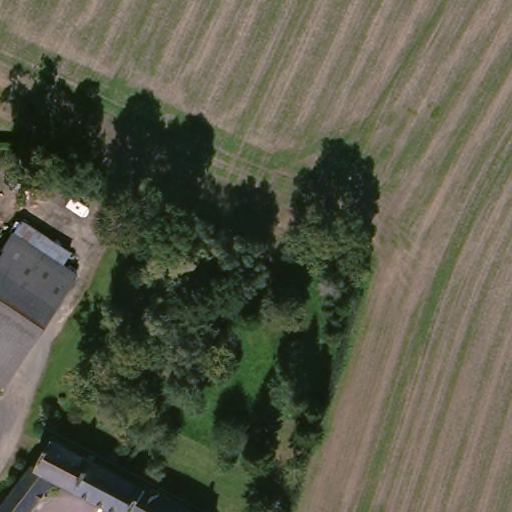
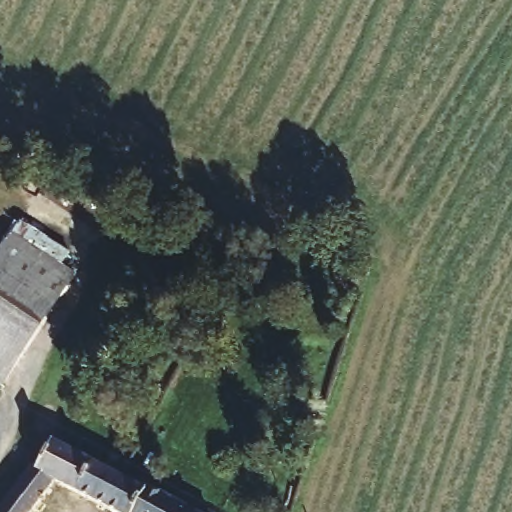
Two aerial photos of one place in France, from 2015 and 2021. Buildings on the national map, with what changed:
unchanged [(7,381),(0,376),(0,258),(17,232),(80,272),(7,381)]
unchanged [(39,464),(44,466),(59,440),(125,476),(150,489),(137,512),(121,512),(64,481),(37,512),(0,512),(0,502),(5,506),(39,464)]
unchanged [(150,489),(152,485),(203,512),(137,512),(150,489)]

